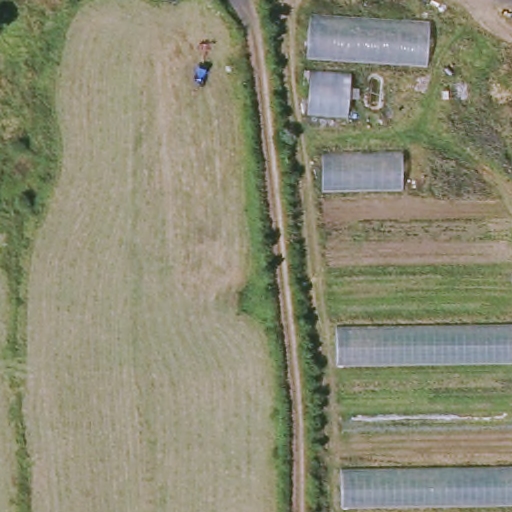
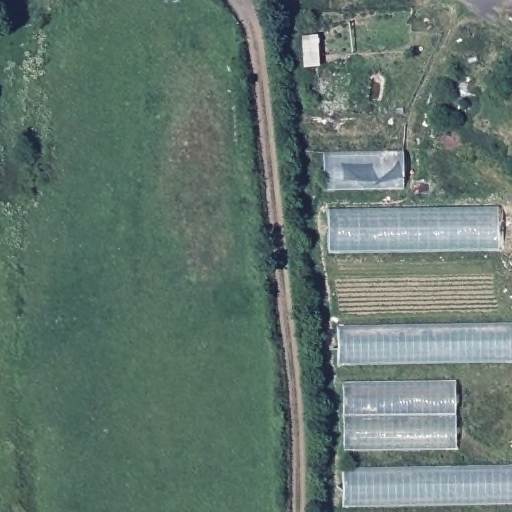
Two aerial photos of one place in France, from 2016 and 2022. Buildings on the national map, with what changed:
demolished [(429,65),(311,59),(314,13),(432,20),(429,65)]
demolished [(353,71),(352,116),(309,115),(313,70),(353,71)]
new [(323,194),(324,153),(403,152),(403,192),(323,194)]
new [(327,212),(497,210),(499,255),(328,255),(327,212)]
unchanged [(512,328),(512,362),(339,366),(338,332),(512,328)]
new [(342,386),(453,386),(455,450),(343,451),(342,386)]
unchanged [(345,505),(343,475),(512,472),(512,503),(345,505)]

